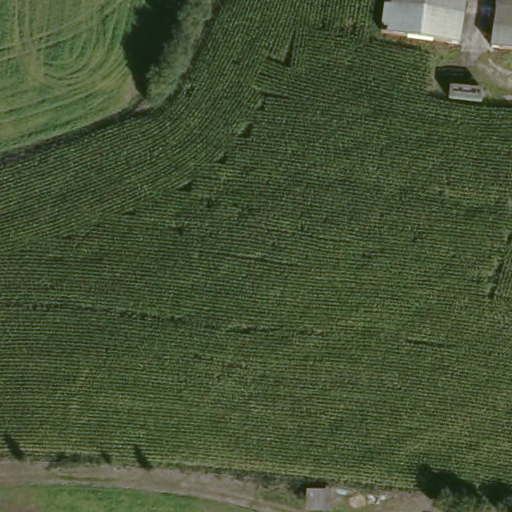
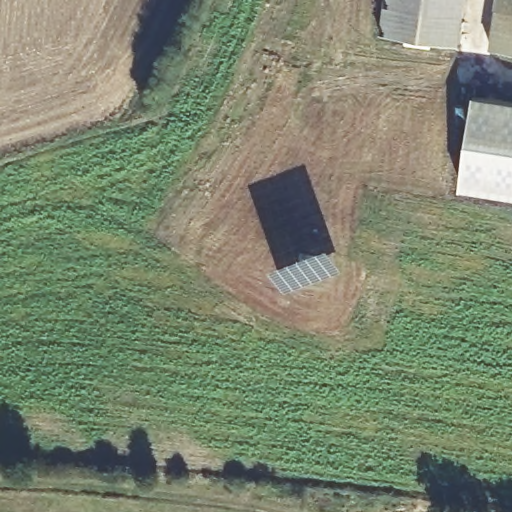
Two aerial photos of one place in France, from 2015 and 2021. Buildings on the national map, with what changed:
unchanged [(378,10),(380,1),(380,0),(458,0),(455,21),(378,10)]
unchanged [(484,33),(489,0),(512,0),(512,37),(484,33)]
new [(471,109),(512,114),(512,205),(460,199),(471,109)]

